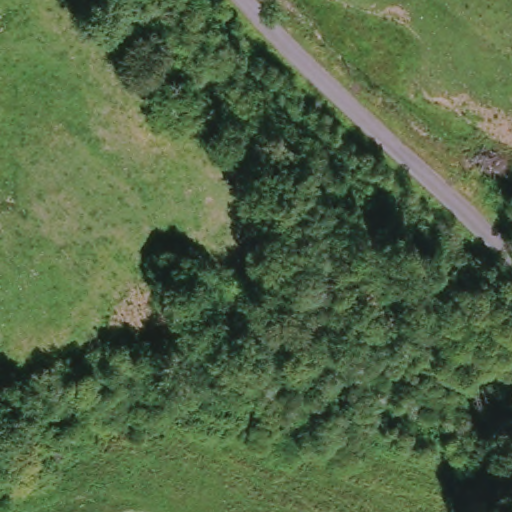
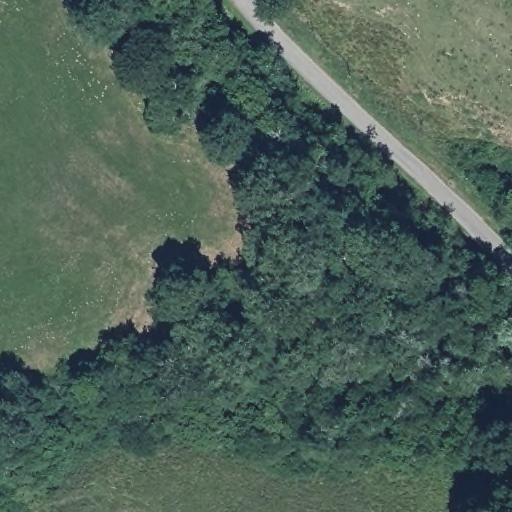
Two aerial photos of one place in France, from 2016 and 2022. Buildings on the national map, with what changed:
[]

